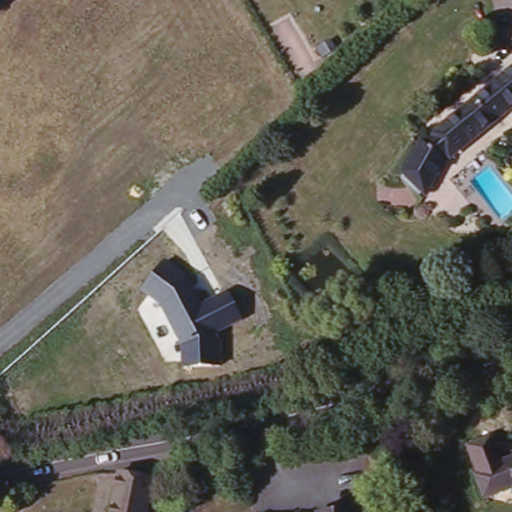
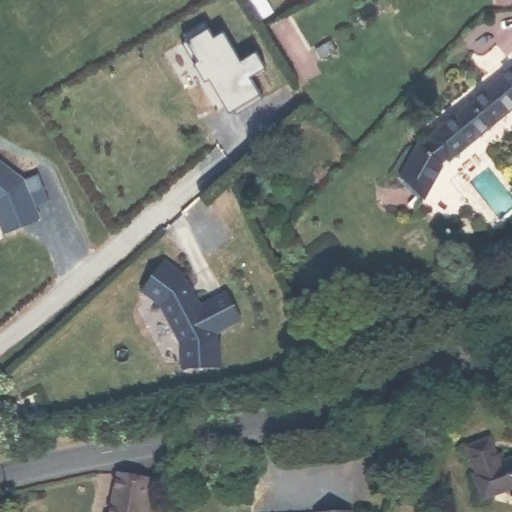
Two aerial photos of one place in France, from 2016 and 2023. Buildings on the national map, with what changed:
new [(208,86),(203,88),(193,72),(198,68),(184,47),(187,45),(182,37),(205,25),(212,38),(223,32),(241,63),(254,55),(265,71),(250,81),(261,100),(229,120),(208,86)]
unchanged [(450,156),(443,163),(446,165),(427,194),(402,178),(424,144),(427,147),(436,138),(435,135),(512,71),(512,108),(452,158),(450,156)]
new [(25,180),(42,174),(52,209),(39,212),(41,222),(2,235),(0,229),(0,160),(25,180)]
unchanged [(182,369),(181,346),(160,305),(141,295),(163,260),(192,278),(205,304),(228,292),(242,320),(218,332),(221,341),(221,367),(182,369)]
unchanged [(466,474),(468,473),(457,445),(478,437),(484,453),(487,451),(492,453),(494,459),(501,456),(511,454),(512,454),(512,481),(475,494),(466,474)]
unchanged [(147,484),(138,512),(105,512),(117,473),(147,484)]

